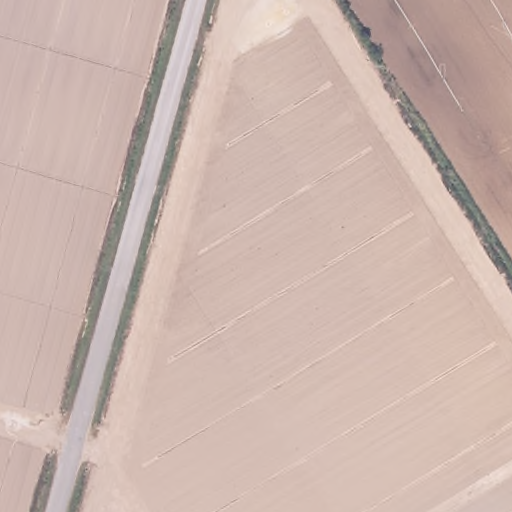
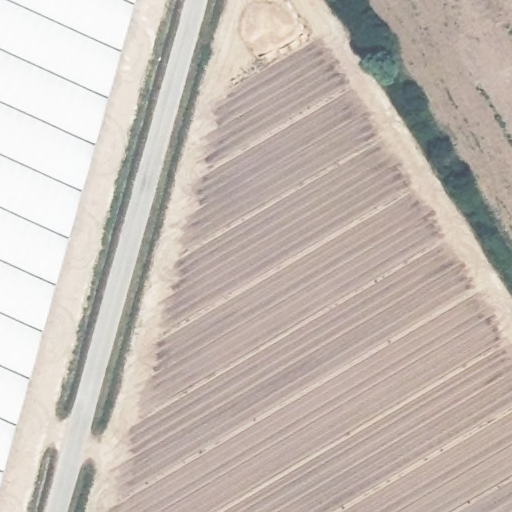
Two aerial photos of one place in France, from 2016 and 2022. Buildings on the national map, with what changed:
new [(0,480),(0,0),(135,0),(0,480)]

